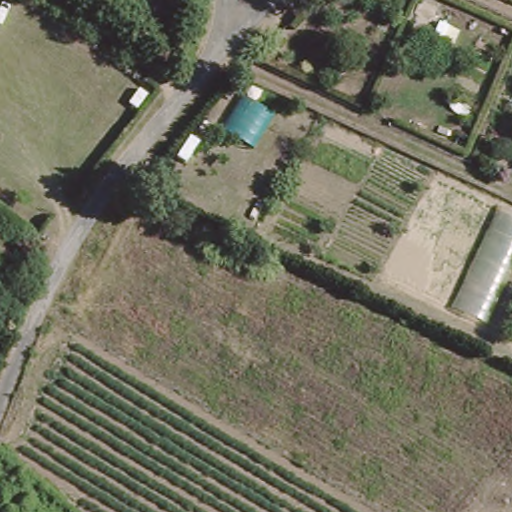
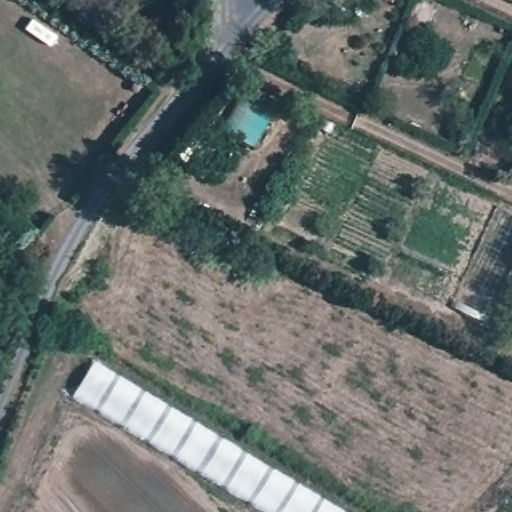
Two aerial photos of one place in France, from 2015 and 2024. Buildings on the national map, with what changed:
unchanged [(240,92),(269,108),(250,144),(221,128),(240,92)]
new [(96,363),(343,512),(263,512),(75,399),(96,363)]

